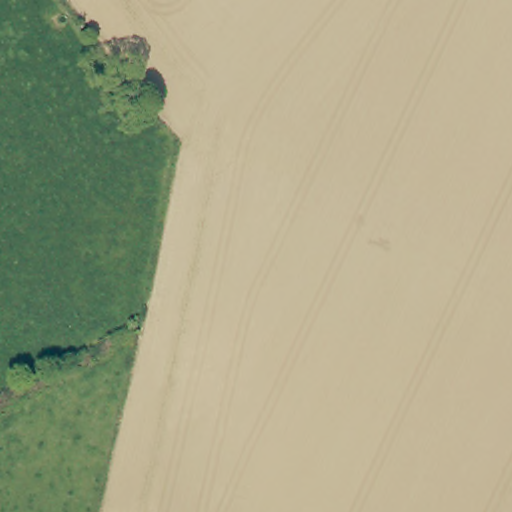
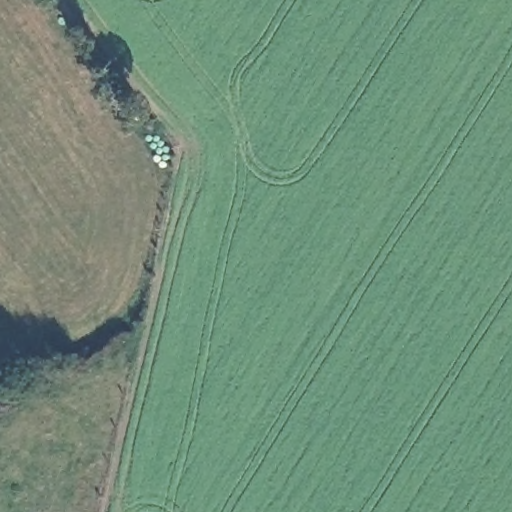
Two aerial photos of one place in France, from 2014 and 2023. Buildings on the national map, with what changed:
[]

